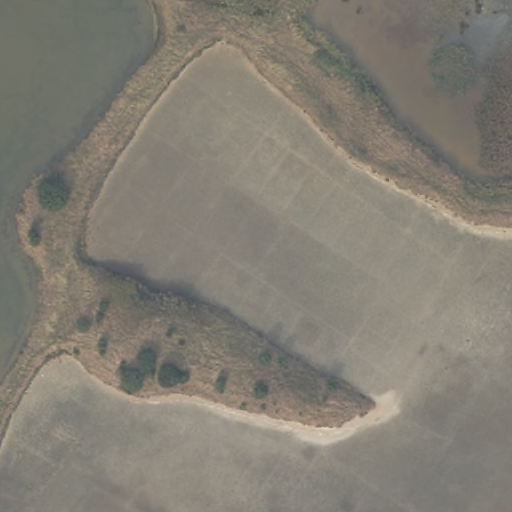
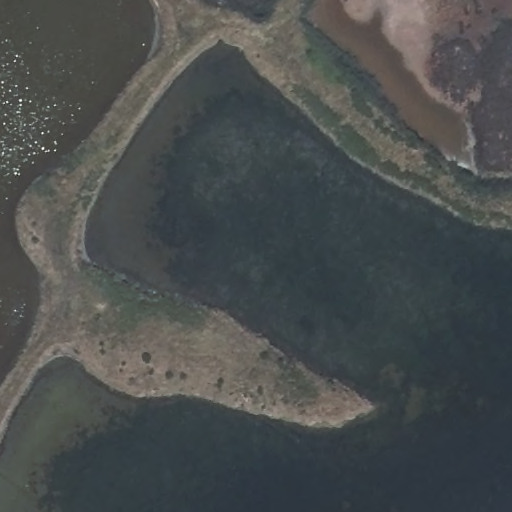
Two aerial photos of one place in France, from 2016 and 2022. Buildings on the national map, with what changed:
[]

